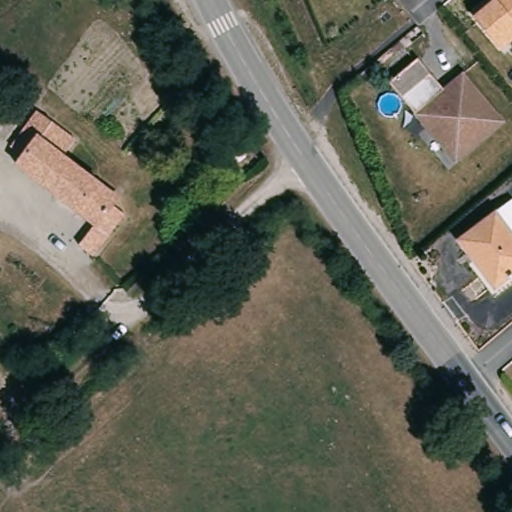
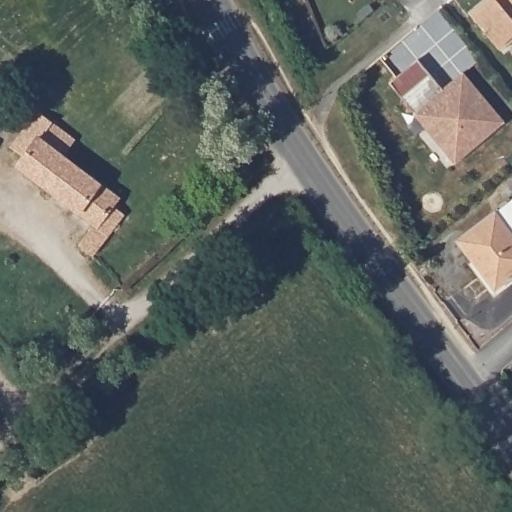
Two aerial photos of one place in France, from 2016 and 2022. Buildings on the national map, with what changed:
unchanged [(487,0),(512,0),(512,41),(500,50),(470,14),(487,0)]
unchanged [(400,99),(387,84),(416,60),(441,90),(461,74),(499,119),(503,124),(453,165),(412,116),(414,115),(400,99)]
unchanged [(113,203),(107,210),(120,220),(88,261),(74,251),(89,230),(12,171),(19,162),(5,152),(32,115),(34,118),(40,109),(54,119),(48,128),(70,145),(58,161),(113,203)]
unchanged [(457,240),(512,200),(512,278),(495,291),(457,240)]

